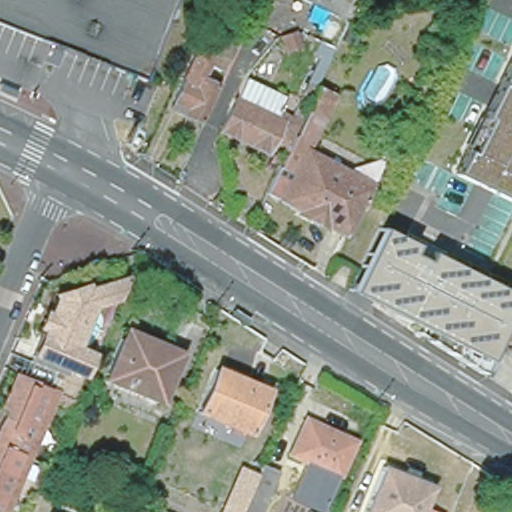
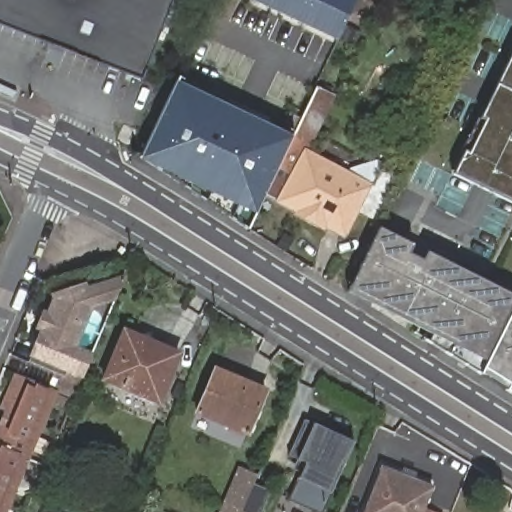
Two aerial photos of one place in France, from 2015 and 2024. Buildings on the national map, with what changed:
unchanged [(176,0),(144,80),(0,18),(0,0),(176,0)]
demolished [(258,0),(255,6),(241,1),(242,0),(258,0)]
new [(255,0),(350,0),(335,36),(255,0)]
demolished [(357,0),(341,33),(279,0),(357,0)]
new [(363,29),(353,48),(336,40),(344,23),(346,20),(363,29)]
demolished [(224,66),(217,79),(206,73),(200,85),(212,91),(194,129),(181,123),(183,116),(170,109),(197,52),(224,66)]
unchanged [(512,52),(512,200),(453,172),(512,52)]
new [(286,133),(249,214),(139,158),(170,79),(286,133)]
unchanged [(378,161),(382,163),(379,169),(371,185),(371,186),(369,189),(345,238),(328,229),(326,231),(294,215),(296,212),(279,203),(280,201),(267,193),(271,185),(278,169),(287,150),(291,140),(292,139),(294,135),(299,125),(307,106),(317,85),(318,83),(332,90),(330,94),(334,96),(315,135),(309,148),(306,153),(348,174),(350,171),(378,161)]
demolished [(274,144),(267,155),(221,133),(241,93),(278,111),(276,115),(299,125),(294,135),(292,139),(291,140),(287,150),(274,144)]
unchanged [(479,372),(420,338),(423,331),(348,294),(380,229),(413,245),(409,254),(425,262),(429,254),(512,296),(512,306),(485,361),(479,372)]
unchanged [(95,309),(89,341),(81,337),(76,346),(94,353),(90,363),(96,367),(78,413),(52,403),(56,394),(14,378),(24,357),(38,332),(33,330),(40,311),(47,312),(52,301),(49,292),(85,280),(88,286),(108,278),(105,266),(125,262),(127,279),(118,306),(95,309)]
new [(512,306),(512,393),(479,372),(485,361),(512,306)]
demolished [(512,322),(512,345),(503,340),(512,322)]
unchanged [(159,401),(105,378),(123,337),(126,330),(163,346),(180,353),(159,401)]
unchanged [(266,391),(247,434),(199,413),(218,370),(266,391)]
unchanged [(56,394),(52,403),(8,512),(0,512),(0,414),(14,378),(56,394)]
unchanged [(305,475),(311,463),(289,453),(305,418),(352,441),(336,476),(331,487),(305,475)]
unchanged [(382,471),(430,493),(423,512),(365,512),(382,471)]
unchanged [(252,474),(268,481),(254,512),(236,512),(252,474)]

